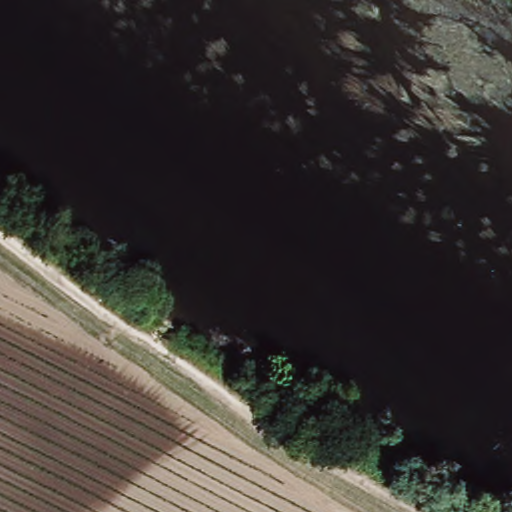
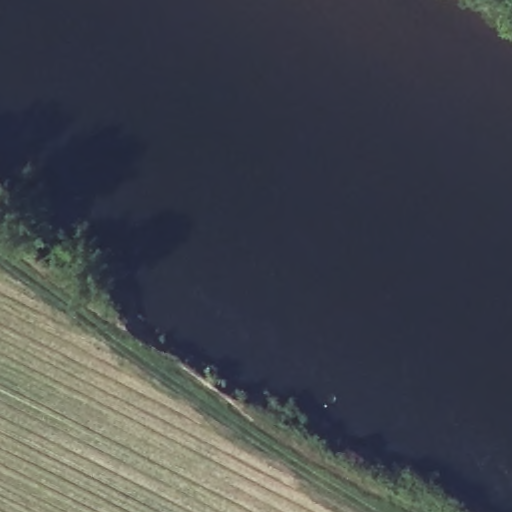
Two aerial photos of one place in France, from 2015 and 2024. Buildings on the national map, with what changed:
[]

